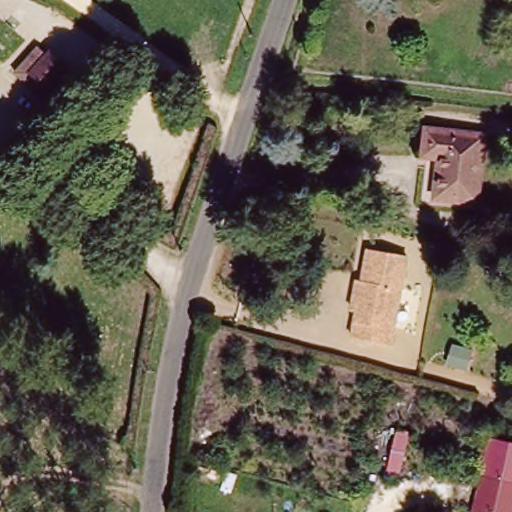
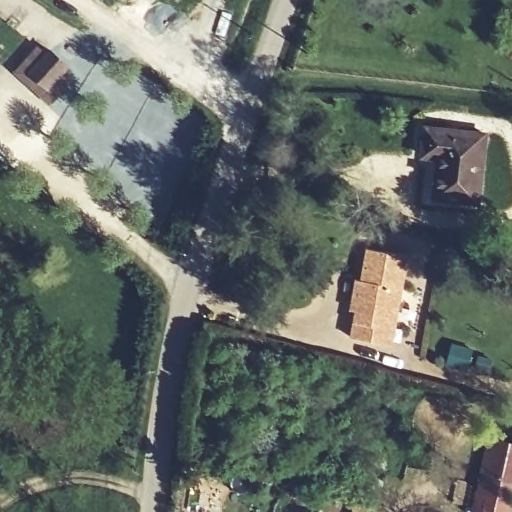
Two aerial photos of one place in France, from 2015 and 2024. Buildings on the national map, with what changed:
unchanged [(54,105),(13,76),(20,64),(31,47),(44,55),(47,50),(68,65),(63,72),(72,79),(54,105)]
unchanged [(420,151),(424,126),(481,133),(473,201),(431,195),(436,154),(420,151)]
unchanged [(361,288),(370,244),(410,252),(391,340),(353,333),(358,307),(354,306),(356,287),(361,288)]
unchanged [(496,441),(512,445),(512,512),(480,512),(496,441)]

